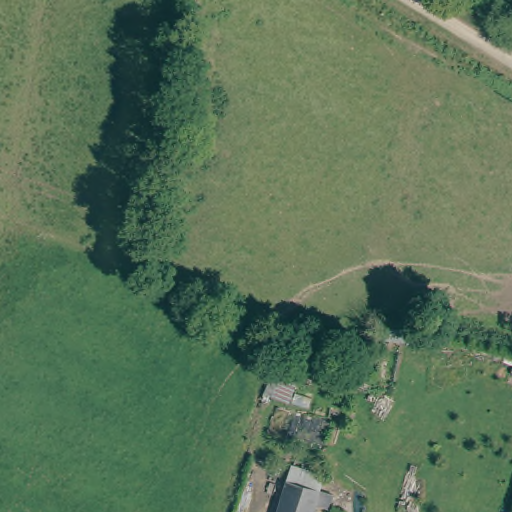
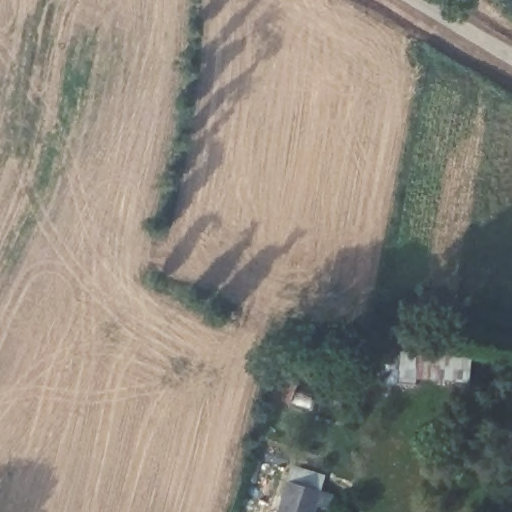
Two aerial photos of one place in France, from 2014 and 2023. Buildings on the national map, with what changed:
unchanged [(322,489),(316,512),(281,512),(290,480),(322,489)]

